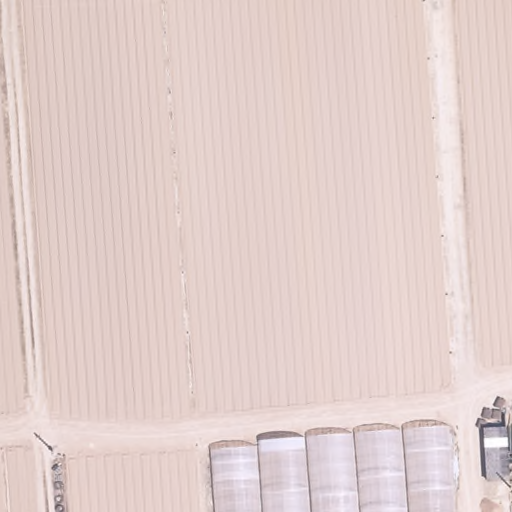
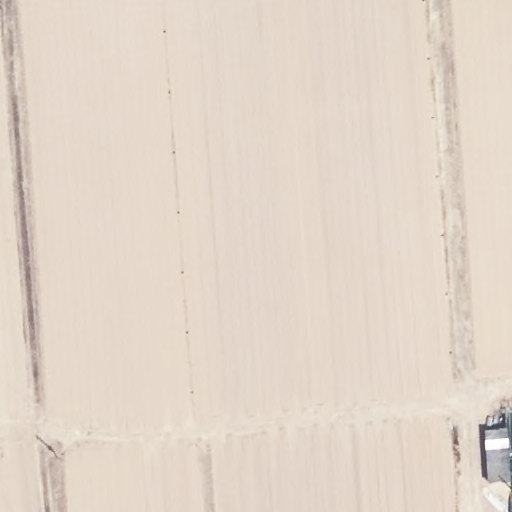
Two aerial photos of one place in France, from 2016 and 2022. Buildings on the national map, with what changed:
unchanged [(507,404),(511,478),(486,478),(483,410),(507,404)]
demolished [(456,512),(220,512),(215,440),(448,420),(456,512)]

